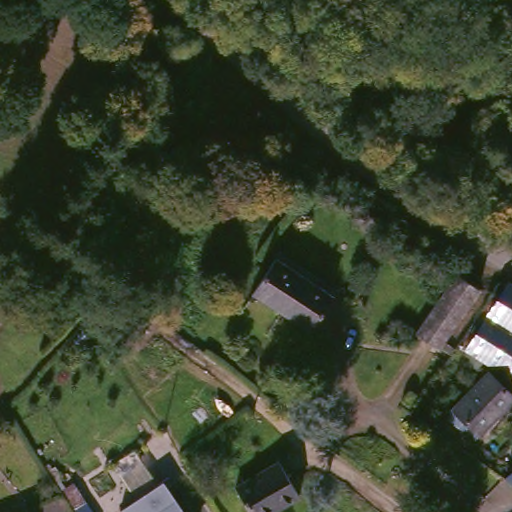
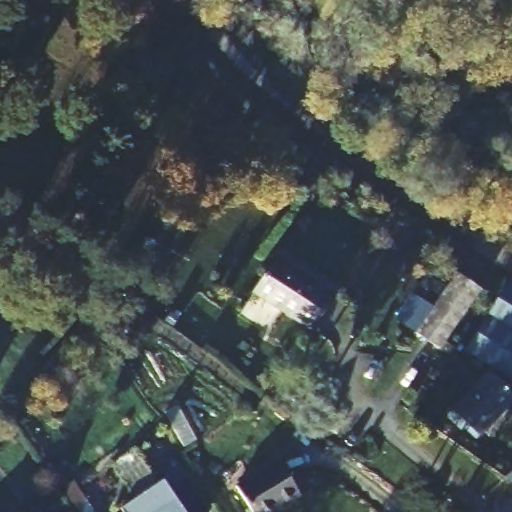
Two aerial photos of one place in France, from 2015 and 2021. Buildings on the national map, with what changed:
unchanged [(338,298),(315,334),(257,296),(281,260),(338,298)]
unchanged [(458,272),(487,290),(449,350),(420,332),(458,272)]
unchanged [(467,355),(512,287),(512,288),(512,385),(467,355)]
unchanged [(488,378),(512,400),(512,406),(481,442),(454,417),(488,378)]
unchanged [(125,508),(140,497),(117,463),(139,448),(162,483),(168,480),(173,487),(189,512),(127,512),(125,508)]
unchanged [(291,475),(302,493),(268,512),(258,512),(242,483),(283,460),(291,475)]
unchanged [(505,479),(512,474),(512,484),(505,479)]

